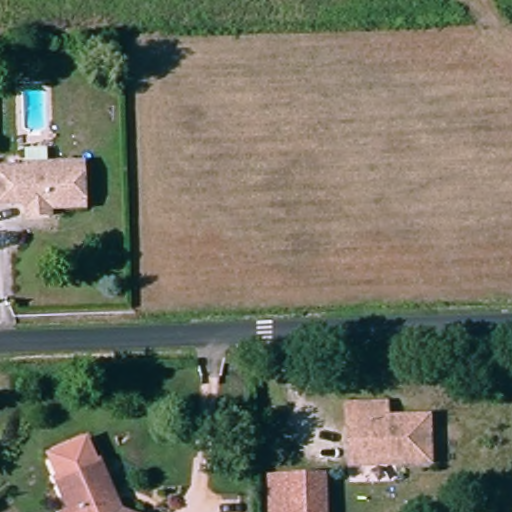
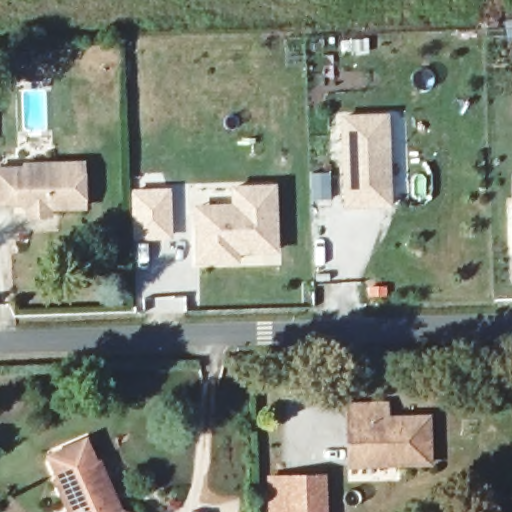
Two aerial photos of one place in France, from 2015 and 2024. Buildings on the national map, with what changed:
new [(390,114),(392,209),(343,210),(339,116),(390,114)]
unchanged [(94,166),(94,207),(1,207),(1,166),(94,166)]
new [(275,184),(278,253),(239,254),(239,263),(195,265),(193,205),(230,204),(230,185),(275,184)]
new [(171,187),(173,239),(131,240),(129,188),(171,187)]
new [(512,194),(512,254),(510,195),(512,194)]
new [(186,295),(187,312),(155,313),(154,297),(186,295)]
unchanged [(346,398),(387,398),(387,412),(443,412),(443,462),(346,463),(346,398)]
unchanged [(66,480),(68,479),(60,455),(98,442),(106,466),(109,465),(120,496),(125,512),(77,512),(66,480)]
unchanged [(328,473),(328,500),(328,512),(275,512),(274,474),(308,473),(328,473)]

